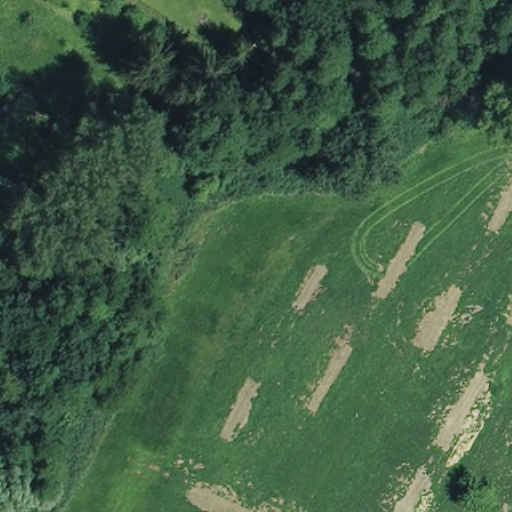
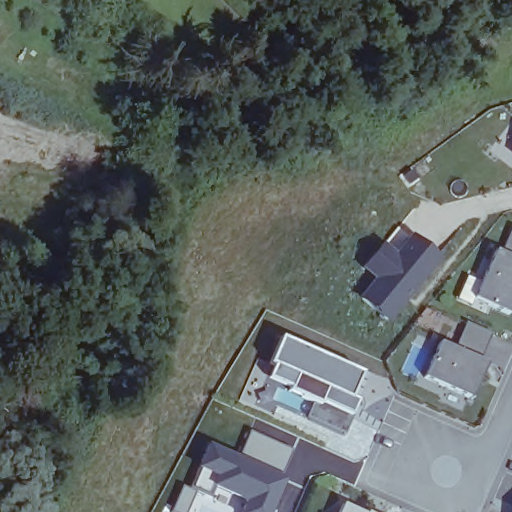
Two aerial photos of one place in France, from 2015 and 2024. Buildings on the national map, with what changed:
new [(509,155),(512,151),(512,157),(509,155)]
unchanged [(31,230),(0,217),(0,176),(43,197),(31,230)]
new [(370,281),(357,269),(398,226),(440,262),(388,325),(355,298),(370,281)]
new [(508,315),(473,301),(495,252),(501,255),(511,227),(512,228),(512,307),(508,315)]
new [(480,361),(486,363),(471,400),(423,378),(438,345),(452,350),(465,323),(491,334),(480,361)]
new [(349,400),(358,403),(351,420),(345,437),(305,419),(308,402),(285,392),(286,390),(263,381),(269,368),(263,366),(275,338),(360,374),(349,400)]
new [(236,512),(188,493),(208,446),(237,458),(250,431),(293,450),(271,512),(236,512)]
new [(358,512),(338,512),(341,505),(358,512)]

